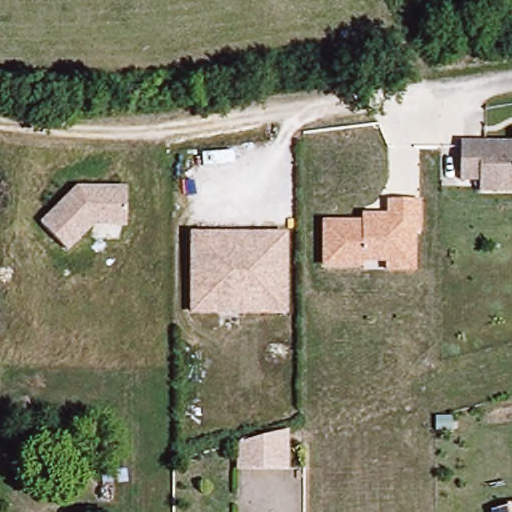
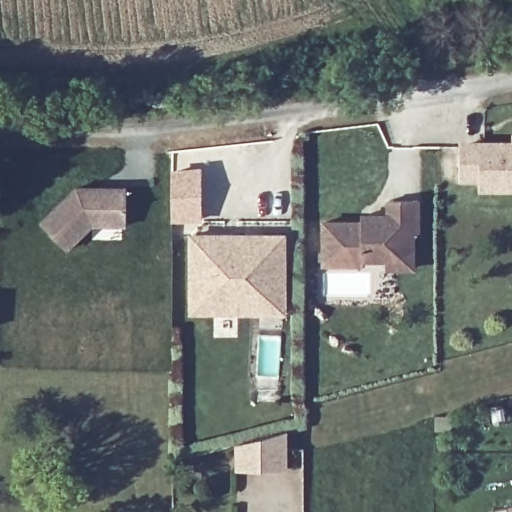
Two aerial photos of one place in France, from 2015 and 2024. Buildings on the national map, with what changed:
unchanged [(455,169),(455,138),(481,138),(481,135),(508,135),(508,124),(512,124),(512,179),(492,179),(475,180),(476,169),(455,169)]
new [(177,173),(207,170),(206,220),(176,219),(177,173)]
unchanged [(77,187),(126,190),(125,227),(91,224),(65,248),(40,222),(77,187)]
unchanged [(420,233),(415,233),(415,272),(387,271),(387,259),(365,260),(365,269),(323,268),(323,221),(363,221),(362,216),(387,215),(388,200),(419,200),(420,233)]
unchanged [(287,233),(290,315),(191,316),(190,232),(287,233)]
unchanged [(235,470),(235,445),(284,434),(285,472),(235,470)]
unchanged [(490,511),(512,507),(512,512),(490,512),(490,511)]

